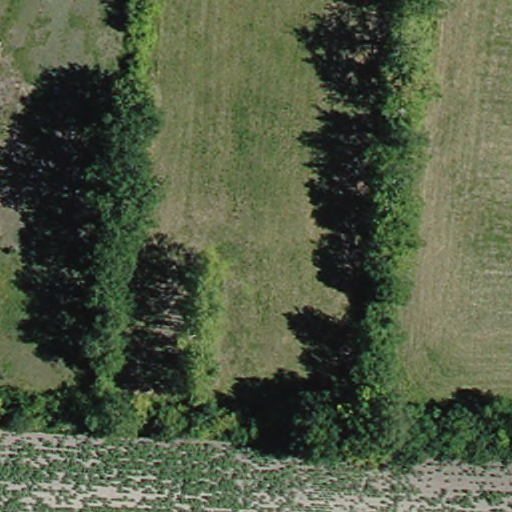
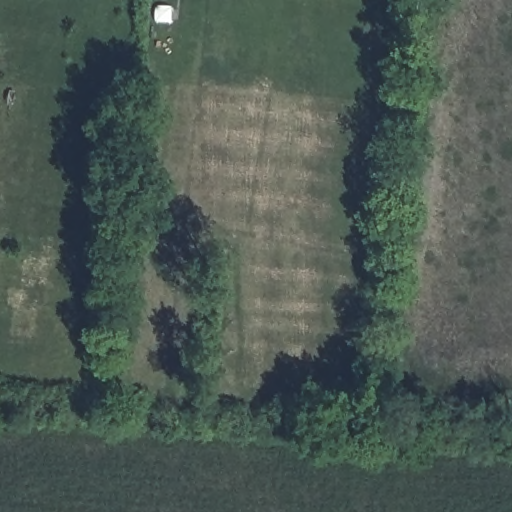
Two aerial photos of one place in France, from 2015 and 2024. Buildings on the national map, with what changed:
[]

